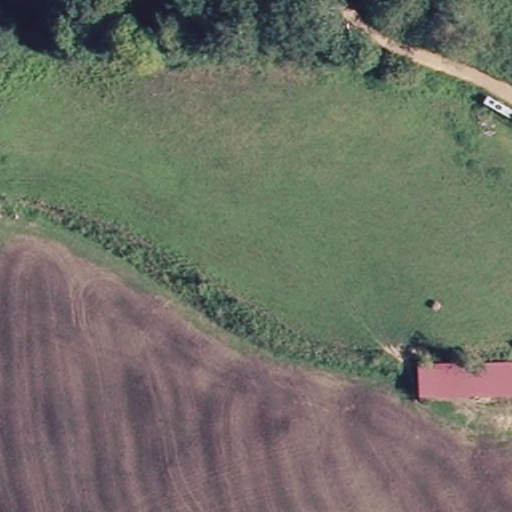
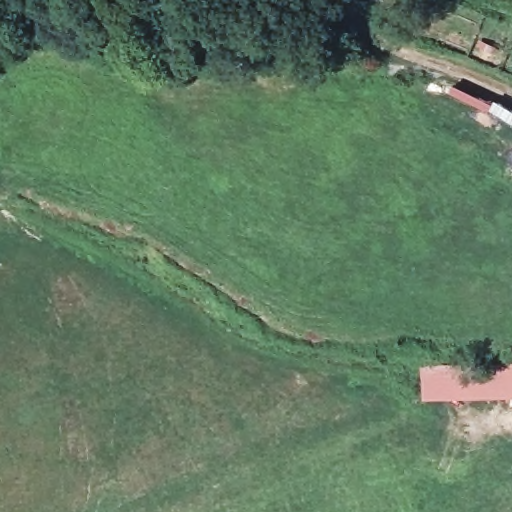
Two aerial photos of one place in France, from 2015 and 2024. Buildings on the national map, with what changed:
unchanged [(482,109),(488,97),(512,111),(512,125),(482,109)]
unchanged [(421,394),(421,357),(512,356),(512,396),(421,394)]

